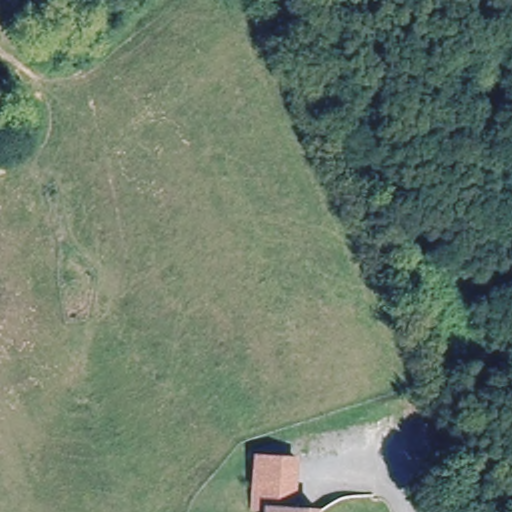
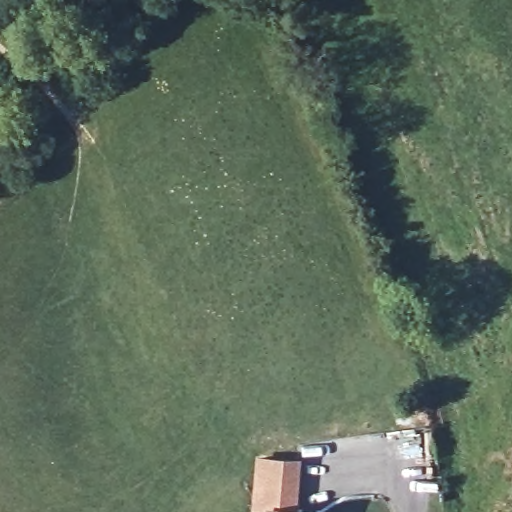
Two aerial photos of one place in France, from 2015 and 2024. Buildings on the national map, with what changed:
unchanged [(298,512),(271,512),(264,512),(252,512),(258,453),(301,457),(298,512)]

